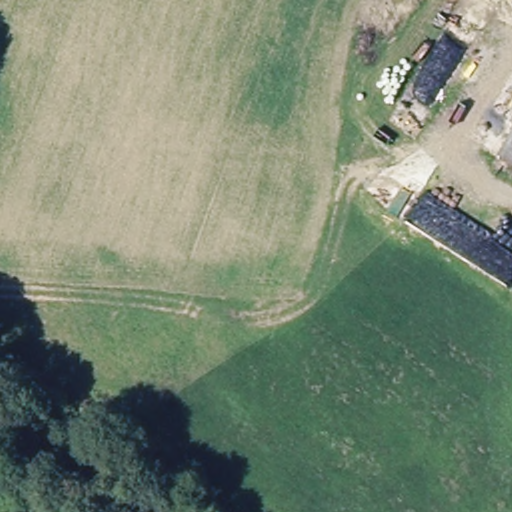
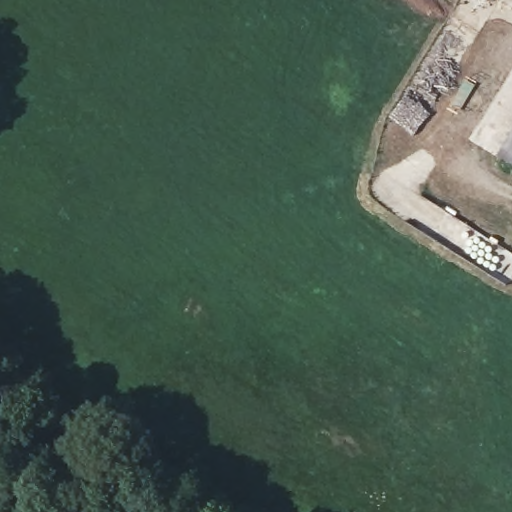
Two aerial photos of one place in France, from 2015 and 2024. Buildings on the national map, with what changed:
unchanged [(512,142),(512,164),(502,158),(512,142)]

